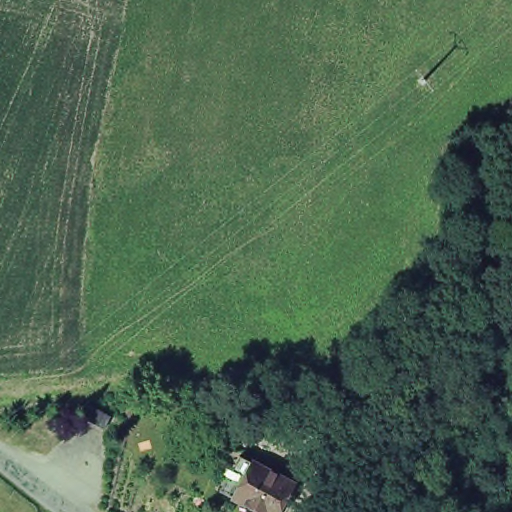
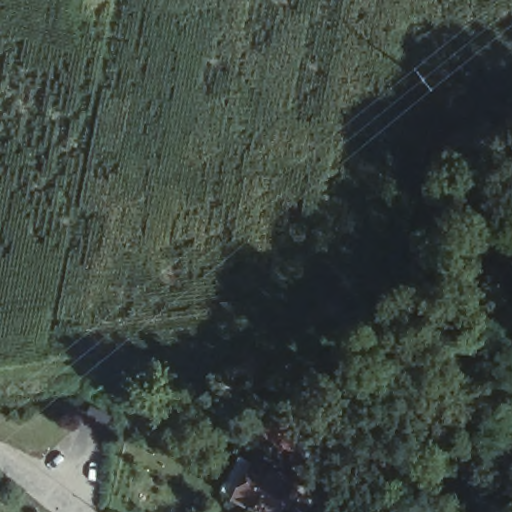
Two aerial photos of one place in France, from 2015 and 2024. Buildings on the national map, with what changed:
unchanged [(109,419),(102,431),(83,419),(90,407),(109,419)]
unchanged [(316,430),(306,454),(291,448),(259,435),(268,415),(299,428),(301,424),(316,430)]
unchanged [(229,499),(229,498),(216,491),(235,456),(248,463),(289,484),(273,512),(254,512),(229,499)]

